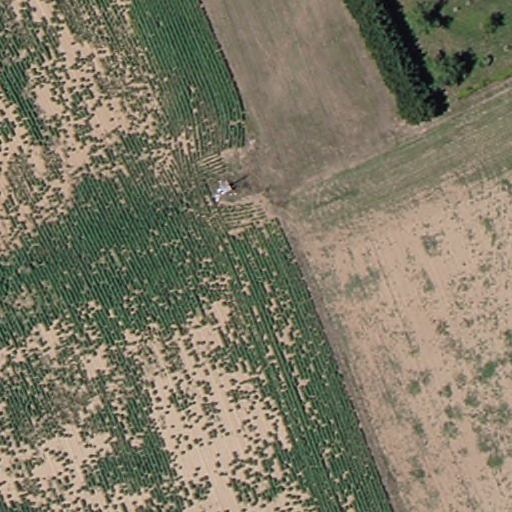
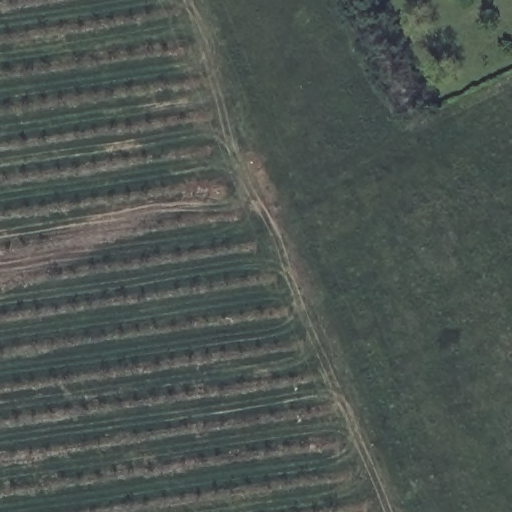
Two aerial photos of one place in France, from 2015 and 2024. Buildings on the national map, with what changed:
[]

